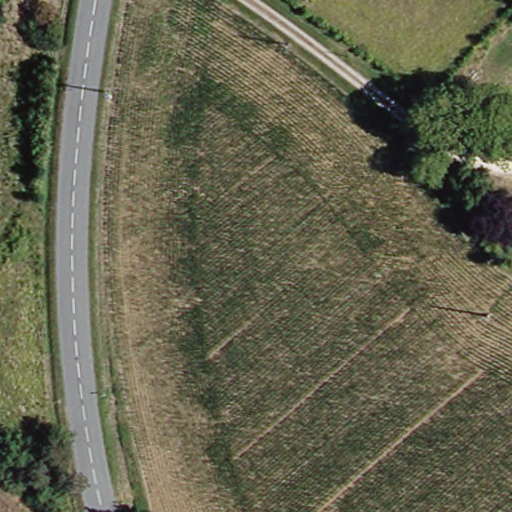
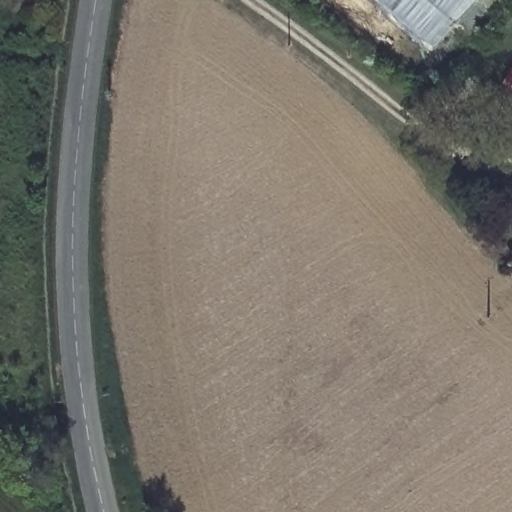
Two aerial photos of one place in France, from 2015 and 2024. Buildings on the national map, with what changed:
new [(372,0),(477,0),(430,52),(372,0)]

